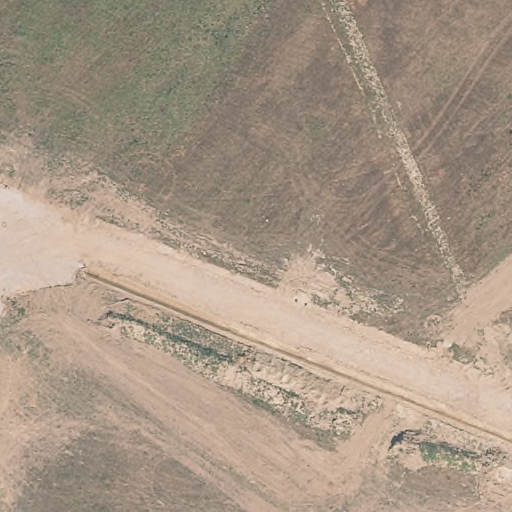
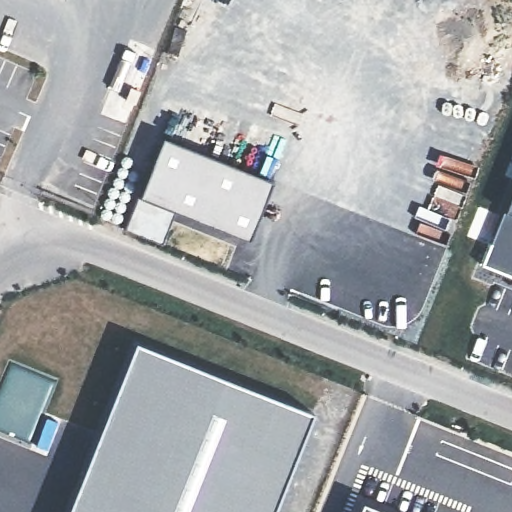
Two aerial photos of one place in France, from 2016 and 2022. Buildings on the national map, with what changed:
new [(311,411),(270,512),(64,512),(134,340),(311,411)]
new [(356,512),(360,503),(382,512),(356,512)]

